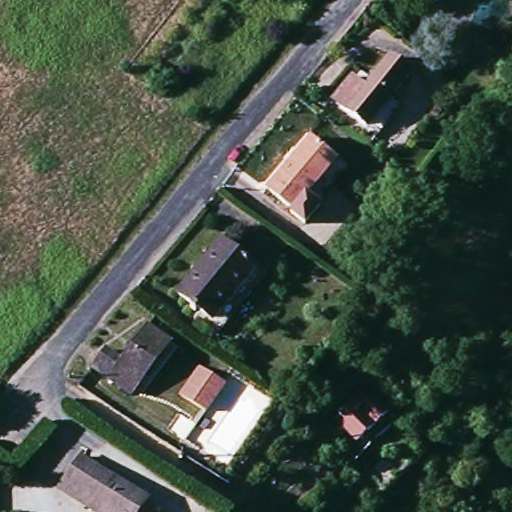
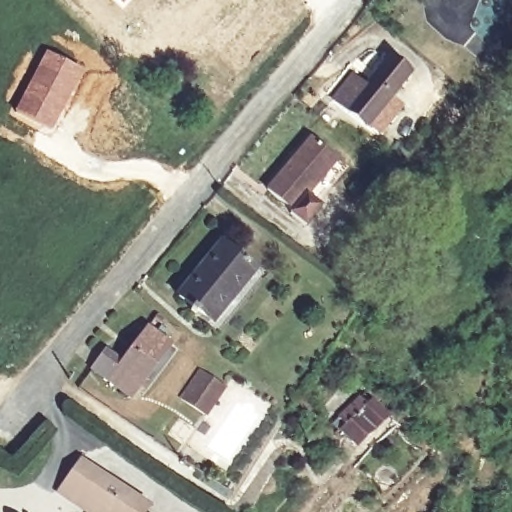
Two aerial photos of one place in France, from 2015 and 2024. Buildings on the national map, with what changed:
new [(123,6),(118,0),(129,0),(123,6)]
unchanged [(413,105),(399,95),(376,126),(356,111),(373,87),(358,77),(381,46),(395,56),(430,81),(413,105)]
new [(46,50),(82,71),(51,131),(14,111),(46,50)]
unchanged [(298,213),(271,192),(313,135),(350,163),(322,202),(325,205),(312,226),(296,216),(298,213)]
unchanged [(210,316),(198,307),(181,293),(222,240),(256,264),(230,300),(225,297),(210,316)]
unchanged [(210,316),(225,297),(230,300),(256,264),(267,271),(221,332),(195,313),(198,307),(210,316)]
unchanged [(137,396),(95,368),(107,352),(125,362),(152,330),(174,346),(137,396)]
unchanged [(207,418),(178,399),(197,369),(226,388),(207,418)]
unchanged [(371,405),(397,425),(370,457),(345,437),(371,405)]
unchanged [(88,461),(155,506),(150,512),(94,512),(66,493),(88,461)]
unchanged [(159,512),(150,512),(155,506),(159,512)]

